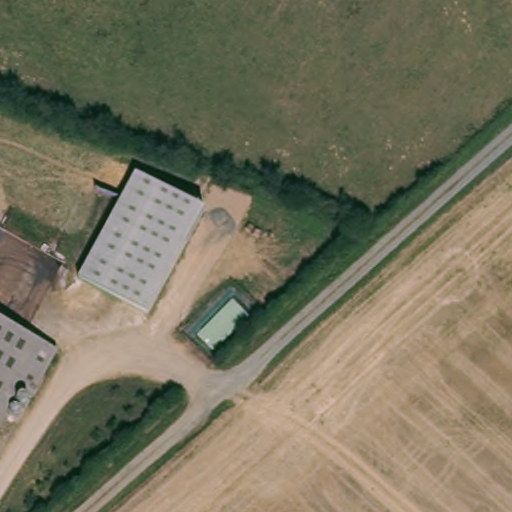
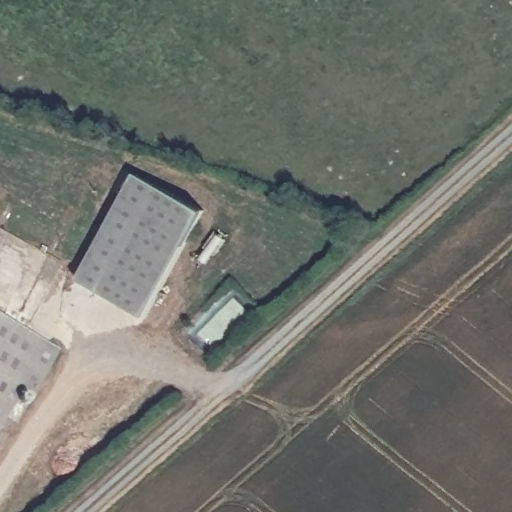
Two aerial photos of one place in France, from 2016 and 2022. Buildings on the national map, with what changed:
unchanged [(135,174),(204,212),(146,316),(78,279),(135,174)]
unchanged [(16,387),(0,416),(0,322),(51,349),(29,393),(16,387)]

